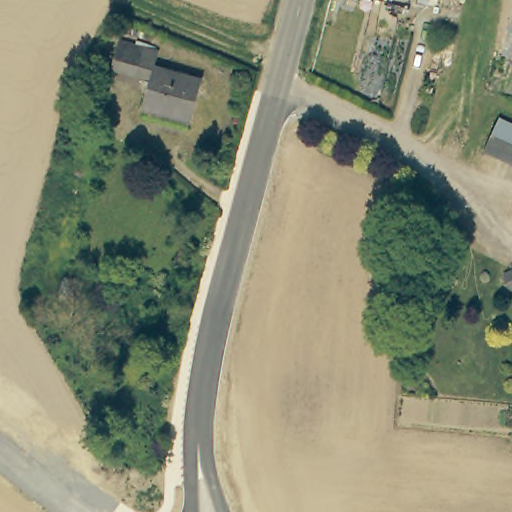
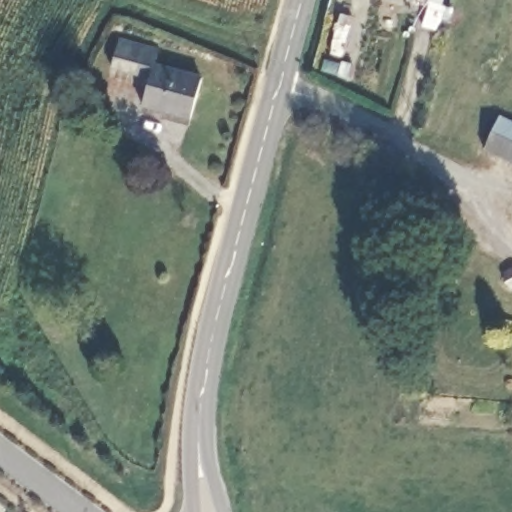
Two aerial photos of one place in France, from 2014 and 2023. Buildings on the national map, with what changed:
unchanged [(155,60),(202,73),(191,115),(142,102),(150,73),(111,62),(119,35),(159,46),(155,60)]
unchanged [(495,111),(512,119),(512,160),(479,145),(495,111)]
unchanged [(504,282),(504,280),(503,279),(503,272),(504,272),(511,268),(512,268),(512,290),(508,287),(505,284),(504,282)]

